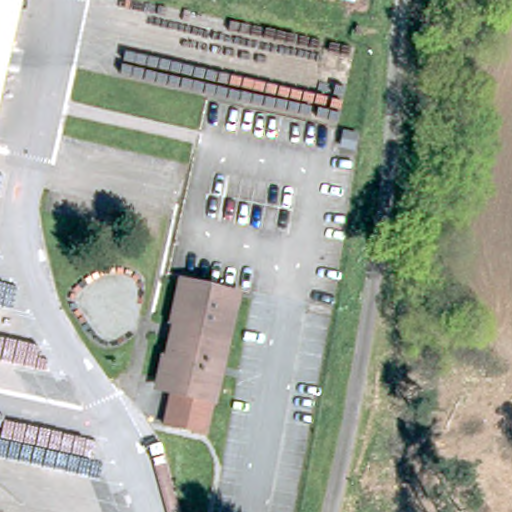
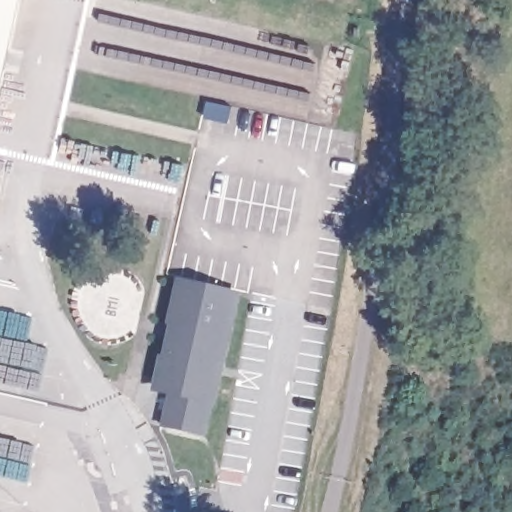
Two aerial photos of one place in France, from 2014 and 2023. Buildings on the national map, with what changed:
unchanged [(0,0),(21,0),(0,100),(0,0)]
unchanged [(237,286),(205,430),(164,420),(171,386),(157,383),(165,349),(170,350),(177,321),(172,320),(182,274),(237,286)]

